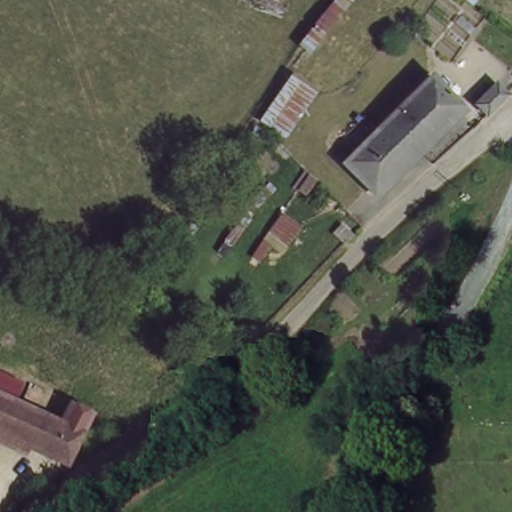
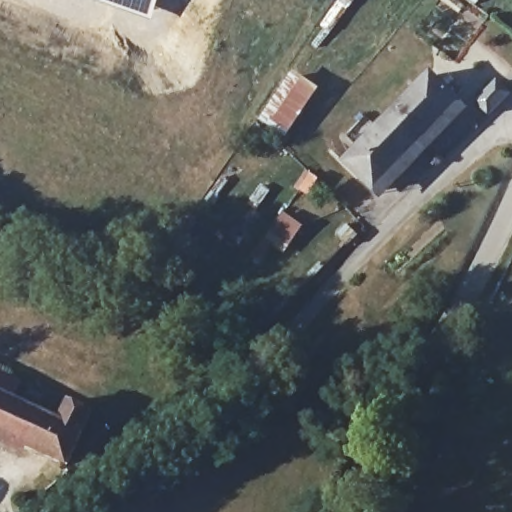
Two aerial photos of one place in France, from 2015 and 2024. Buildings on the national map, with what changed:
new [(150,19),(97,0),(157,0),(150,19)]
unchanged [(262,124),(292,69),(320,88),(292,139),(262,124)]
unchanged [(438,70),(468,99),(384,187),(355,158),(438,70)]
unchanged [(490,84),(500,92),(482,114),(472,105),(490,84)]
unchanged [(281,217),(297,230),(280,255),(262,242),(281,217)]
unchanged [(332,234),(341,225),(352,234),(343,244),(332,234)]
unchanged [(88,413),(66,463),(0,433),(0,374),(18,382),(10,400),(58,422),(67,403),(88,413)]

